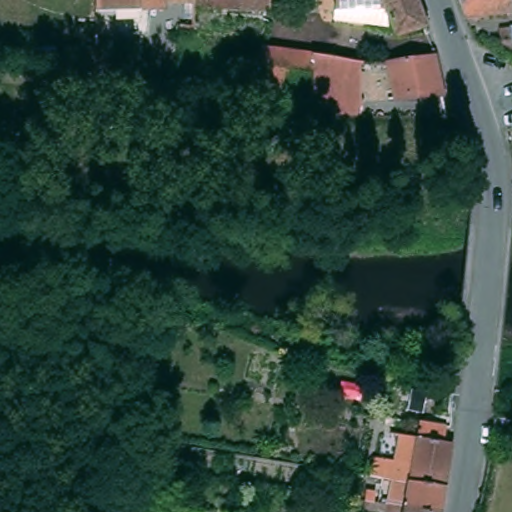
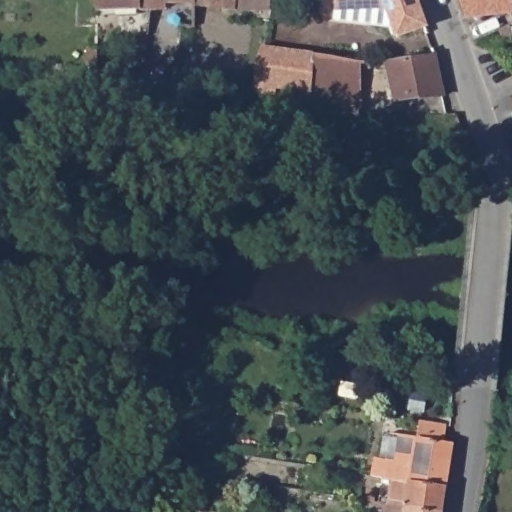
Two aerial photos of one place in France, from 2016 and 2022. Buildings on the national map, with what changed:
unchanged [(171,11),(158,11),(103,11),(103,0),(171,0),(171,5),(171,11)]
unchanged [(171,5),(171,0),(203,0),(202,5),(171,5)]
unchanged [(202,7),(202,5),(203,0),(271,0),(271,9),(246,8),(202,7)]
unchanged [(428,24),(395,32),(389,20),(334,10),(335,0),(420,0),(428,24)]
unchanged [(472,19),(465,0),(512,0),(512,12),(472,19)]
unchanged [(278,93),(277,100),(246,96),(257,48),(307,54),(302,96),(278,93)]
unchanged [(307,54),(360,61),(358,114),(339,114),(332,114),(332,101),(302,101),(302,96),(307,54)]
unchanged [(442,95),(394,101),(387,62),(436,58),(442,95)]
unchanged [(391,431),(452,440),(455,441),(447,485),(441,483),(393,476),(385,475),(391,431)]
unchanged [(139,487),(141,441),(164,443),(161,486),(139,487)]
unchanged [(443,509),(390,500),(393,476),(441,483),(447,485),(443,509)]
unchanged [(388,512),(390,500),(443,509),(443,512),(388,512)]
unchanged [(118,512),(120,505),(145,507),(144,512),(118,512)]

